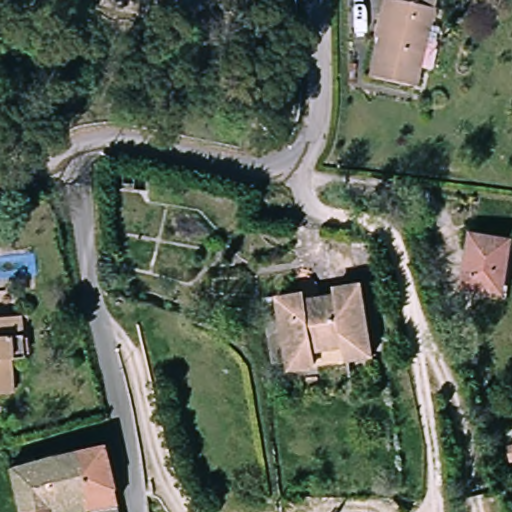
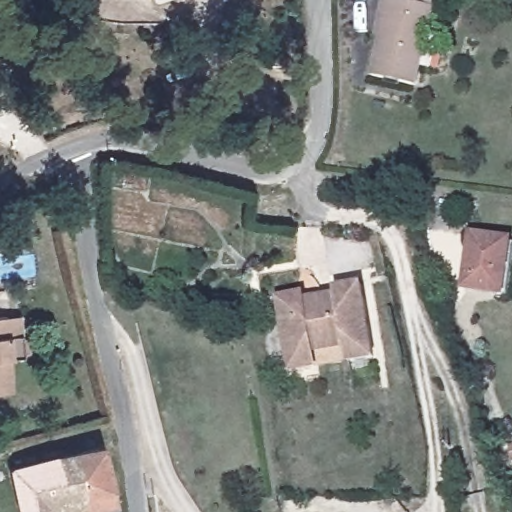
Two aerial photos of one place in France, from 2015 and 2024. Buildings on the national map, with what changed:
unchanged [(382,37),(379,37),(381,14),(384,14),(387,0),(437,0),(436,8),(424,84),(377,78),(382,37)]
unchanged [(470,234),(512,244),(512,250),(505,294),(461,287),(470,234)]
unchanged [(354,366),(351,349),(317,354),(318,369),(293,372),(284,299),(309,295),(312,310),(323,307),(323,300),(339,299),(340,291),(367,289),(377,364),(354,366)]
unchanged [(10,362),(9,397),(0,397),(0,318),(8,318),(21,317),(21,339),(20,361),(10,362)]
unchanged [(512,446),(512,457),(508,447),(512,446)]
unchanged [(99,507),(83,512),(23,512),(18,471),(110,450),(119,512),(99,512),(99,507)]

